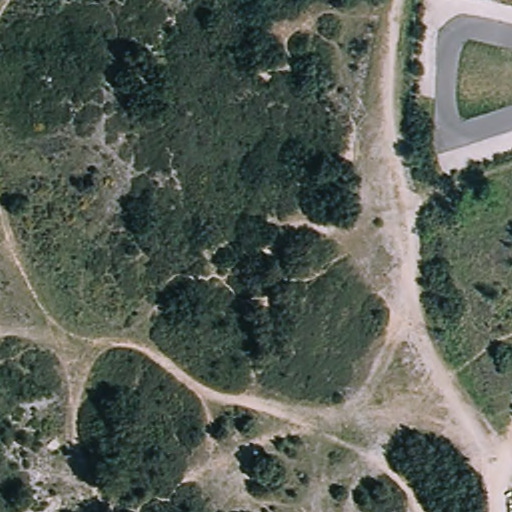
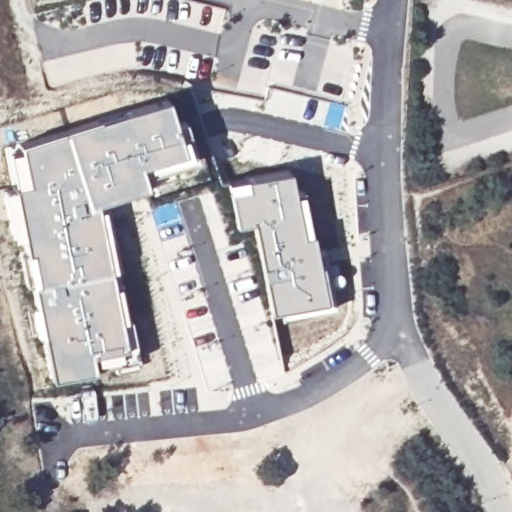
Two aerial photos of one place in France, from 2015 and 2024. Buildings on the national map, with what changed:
new [(13,185),(27,182),(19,143),(166,97),(184,151),(140,166),(147,186),(98,203),(125,345),(91,353),(94,370),(51,380),(13,185)]
new [(253,221),(237,225),(228,183),(288,169),(302,233),(312,231),(324,299),(270,310),(253,221)]

